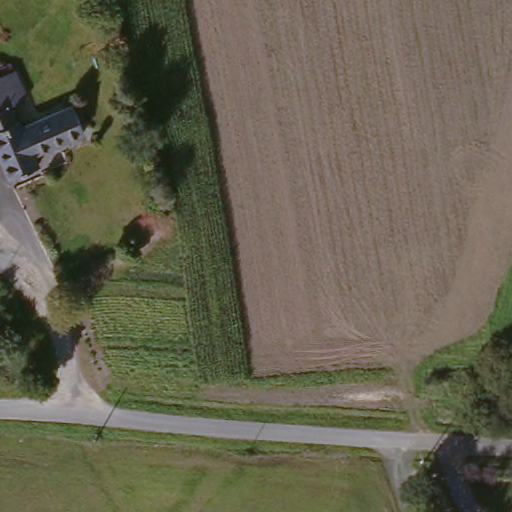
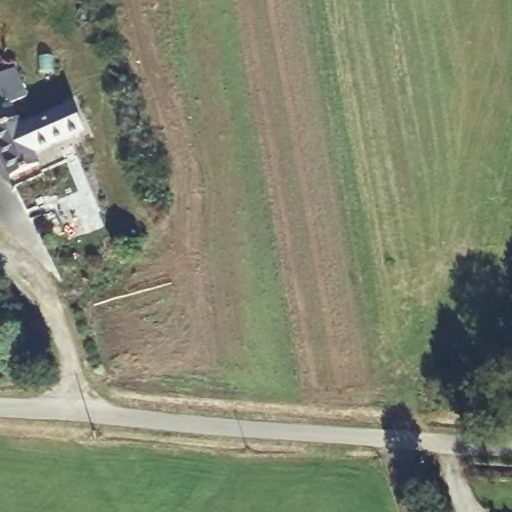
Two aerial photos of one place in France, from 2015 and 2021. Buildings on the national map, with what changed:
unchanged [(41,169),(6,185),(0,173),(0,71),(8,66),(21,101),(4,109),(14,128),(66,100),(81,131),(34,158),(41,169)]

